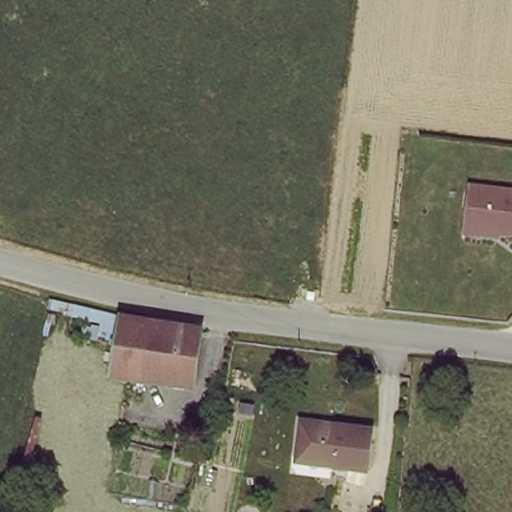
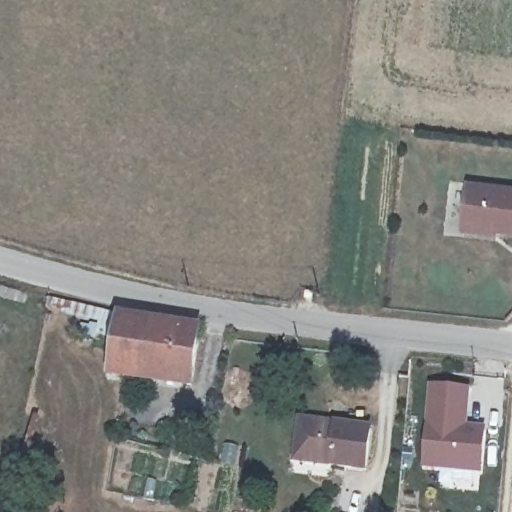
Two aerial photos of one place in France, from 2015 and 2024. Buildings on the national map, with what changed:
unchanged [(466,227),(469,188),(512,192),(512,234),(496,233),(496,236),(465,234),(466,227)]
unchanged [(121,319),(201,328),(193,386),(154,382),(128,380),(113,378),(121,319)]
new [(481,473),(423,468),(431,385),(470,390),(468,425),(486,426),(481,473)]
unchanged [(365,423),(361,465),(326,461),(327,456),(292,453),(296,417),(365,423)]

